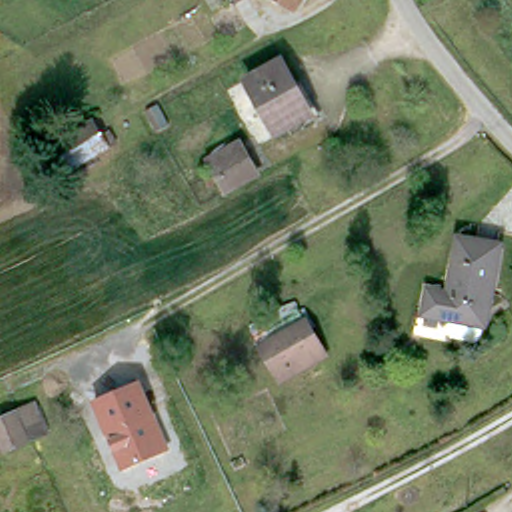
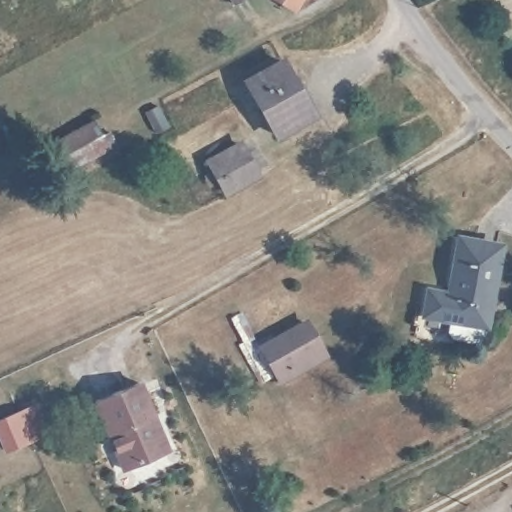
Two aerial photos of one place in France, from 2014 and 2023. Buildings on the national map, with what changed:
unchanged [(236,6),(233,0),(248,0),(236,6)]
unchanged [(276,0),(305,0),(297,13),(276,0)]
unchanged [(278,137),(248,82),(281,63),(313,119),(278,137)]
unchanged [(232,193),(216,162),(244,146),(263,177),(232,193)]
unchanged [(472,326),(426,317),(430,292),(449,296),(460,240),(502,248),(491,306),(487,328),(472,326)]
unchanged [(278,378),(272,369),(258,343),(302,318),(316,344),(321,355),(278,378)]
unchanged [(172,448),(121,472),(90,402),(144,378),(172,448)]
unchanged [(0,418),(41,403),(55,437),(10,452),(0,435),(0,418)]

